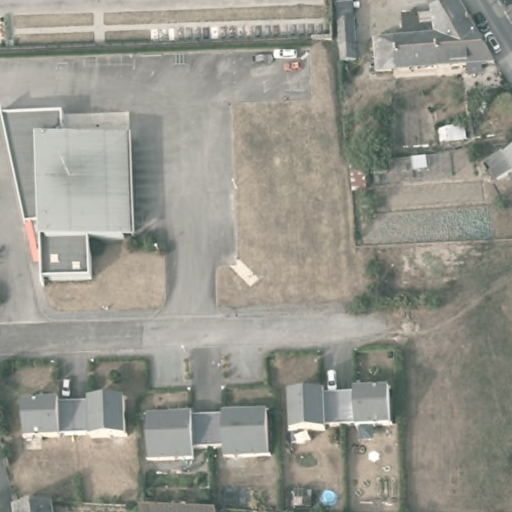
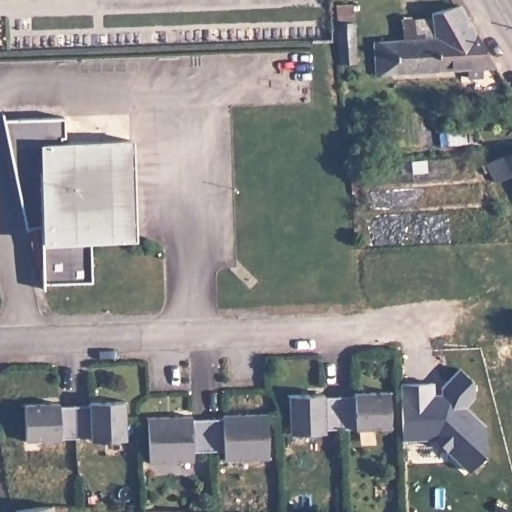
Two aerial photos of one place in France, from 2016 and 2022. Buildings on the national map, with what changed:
unchanged [(491,58),(432,62),(431,33),(428,6),(454,0),(491,58)]
unchanged [(348,16),(350,42),(335,43),(334,37),(333,16),(348,16)]
unchanged [(432,62),(372,65),(372,36),(431,33),(432,62)]
unchanged [(42,257),(40,257),(32,227),(27,228),(5,120),(64,112),(66,132),(61,132),(62,137),(133,134),(122,144),(125,237),(91,239),(92,277),(45,279),(42,257)]
unchanged [(139,238),(125,237),(122,144),(133,134),(139,238)]
unchanged [(490,170),(483,174),(480,166),(501,156),(502,158),(512,154),(512,175),(495,182),(490,170)]
new [(463,407),(483,425),(484,453),(469,473),(446,451),(433,439),(401,441),(398,383),(432,382),(432,393),(439,393),(438,388),(457,368),(472,382),(473,397),(463,407)]
unchanged [(347,396),(349,392),(382,391),(383,427),(351,429),(348,427),(333,427),(332,397),(347,396)]
unchanged [(333,427),(318,428),(317,433),(282,433),(280,395),(315,394),(315,398),(332,397),(333,427)]
unchanged [(78,402),(79,399),(114,398),(116,435),(81,438),(80,434),(67,433),(65,403),(78,402)]
unchanged [(67,433),(50,435),(50,438),(18,439),(16,437),(15,402),(47,400),(49,403),(65,403),(67,433)]
unchanged [(202,420),(216,419),(217,416),(263,413),(265,459),(218,460),(217,450),(204,450),(202,420)]
unchanged [(186,451),(186,461),(145,462),(143,420),(184,417),(186,420),(202,420),(204,450),(186,451)]
unchanged [(35,503),(55,502),(55,512),(13,512),(12,505),(35,503)]
unchanged [(220,512),(146,512),(147,506),(220,509),(220,512)]

